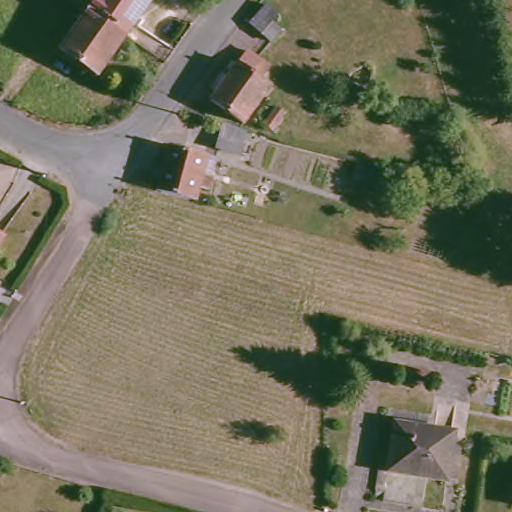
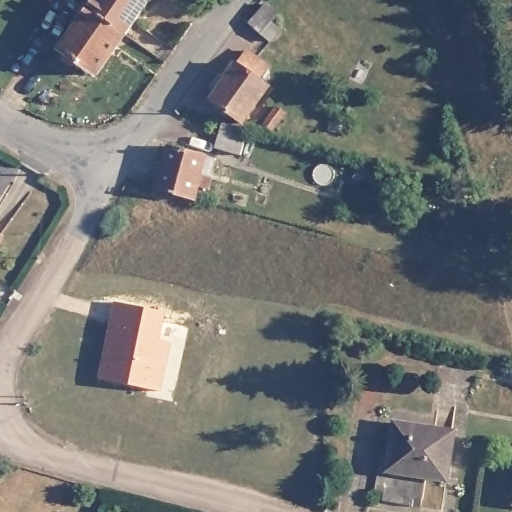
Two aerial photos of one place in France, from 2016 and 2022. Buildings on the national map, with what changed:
unchanged [(145,0),(122,35),(83,11),(90,0),(145,0)]
unchanged [(122,35),(93,76),(55,51),(83,11),(122,35)]
unchanged [(269,87),(241,125),(205,99),(233,61),(235,63),(243,51),(266,69),(258,79),(269,87)]
unchanged [(241,153),(217,147),(221,129),(243,135),(241,153)]
unchanged [(155,191),(169,145),(204,154),(216,157),(209,190),(196,187),(193,202),(155,191)]
new [(117,305),(165,315),(159,342),(171,345),(161,394),(101,382),(117,305)]
unchanged [(389,419),(448,429),(438,479),(380,469),(389,419)]
unchanged [(512,472),(512,501),(508,501),(512,472)]

